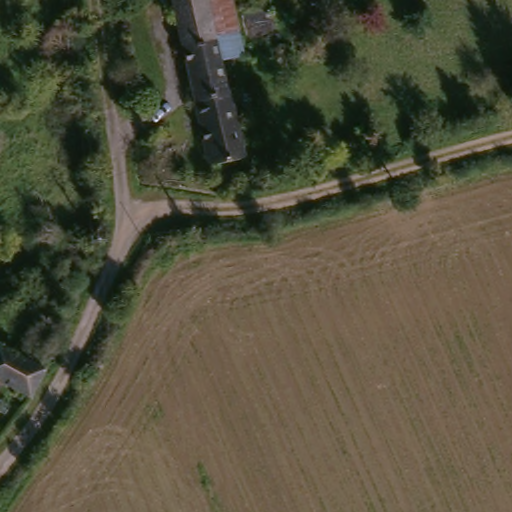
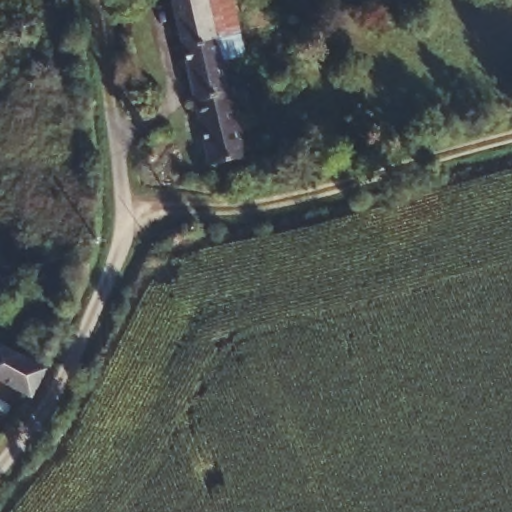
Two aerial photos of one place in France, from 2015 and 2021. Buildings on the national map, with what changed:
unchanged [(169,0),(203,0),(218,56),(244,156),(212,165),(169,0)]
unchanged [(245,51),(218,56),(203,0),(232,0),(245,51)]
unchanged [(53,361),(32,391),(2,373),(0,377),(0,339),(53,361)]

